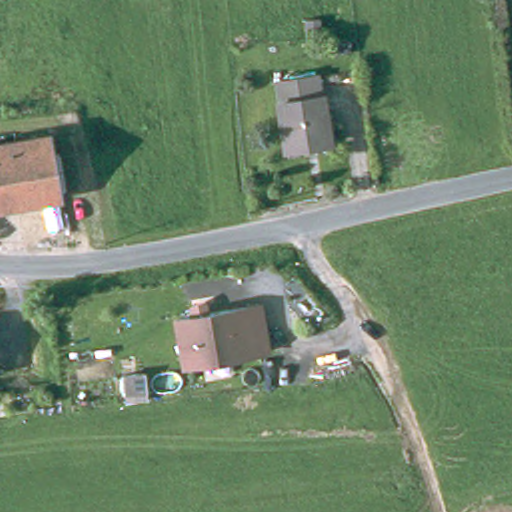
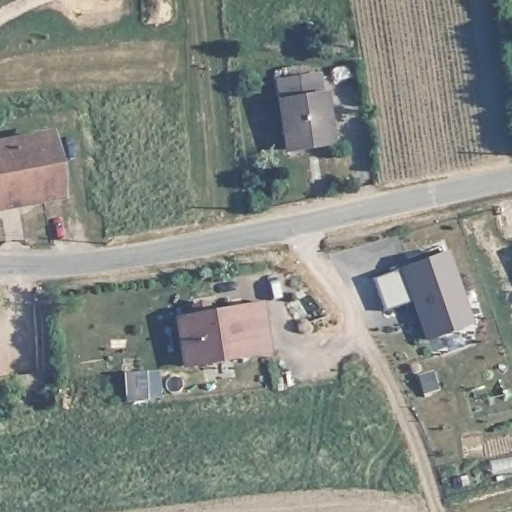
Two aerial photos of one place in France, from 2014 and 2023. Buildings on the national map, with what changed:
unchanged [(330,156),(287,164),(276,98),(318,90),(330,156)]
unchanged [(52,134),(63,196),(0,206),(0,142),(52,134)]
new [(398,267),(445,250),(472,321),(425,340),(410,298),(385,308),(373,277),(398,267)]
unchanged [(182,364),(174,317),(245,305),(257,302),(262,335),(265,350),(182,364)]

